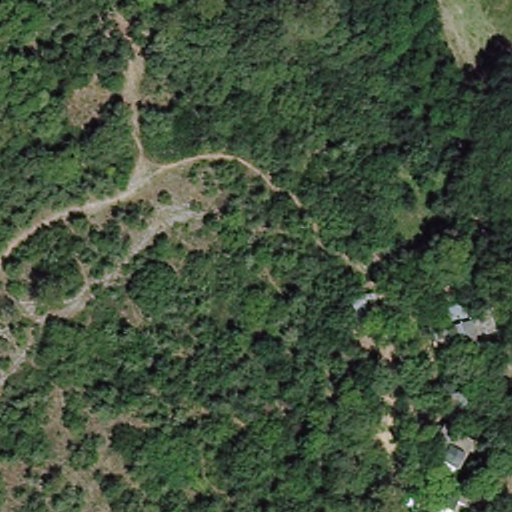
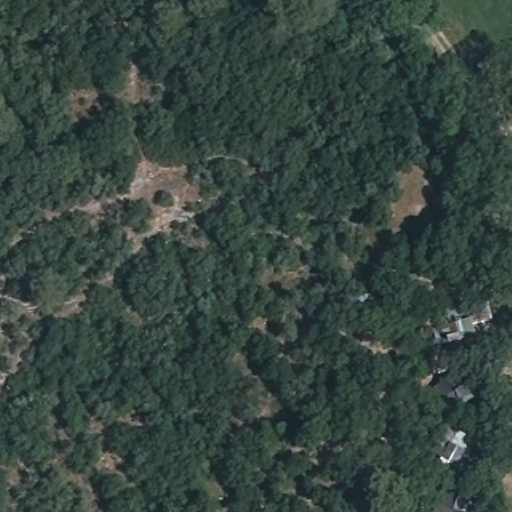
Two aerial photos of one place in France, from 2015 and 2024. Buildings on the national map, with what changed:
unchanged [(442,342),(433,312),(484,297),(493,327),(442,342)]
unchanged [(446,421),(476,435),(459,469),(430,455),(446,421)]
unchanged [(454,492),(469,497),(464,512),(447,512),(454,492)]
unchanged [(433,507),(446,512),(431,512),(433,507)]

